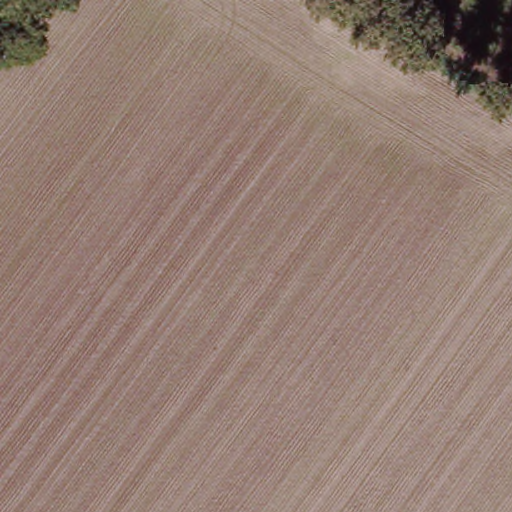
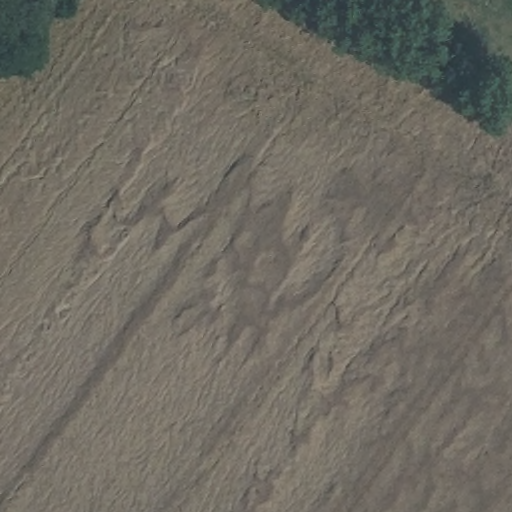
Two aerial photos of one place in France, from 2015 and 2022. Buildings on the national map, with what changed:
[]

